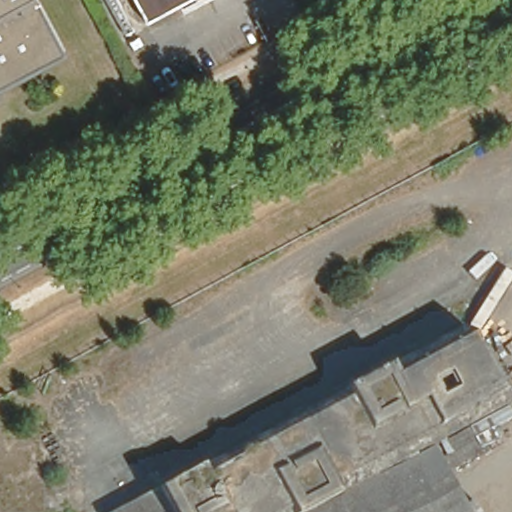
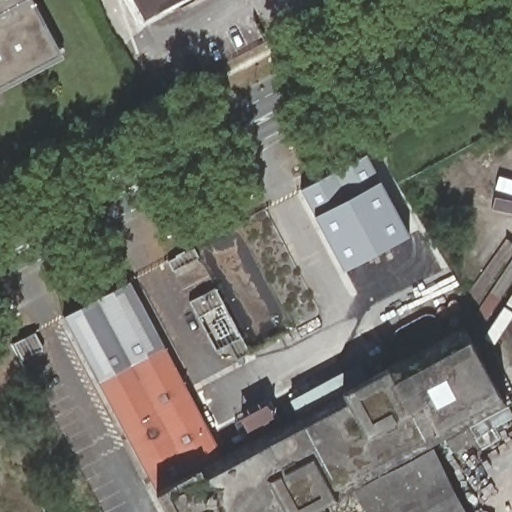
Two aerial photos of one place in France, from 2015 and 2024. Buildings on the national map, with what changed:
unchanged [(58,49),(0,80),(0,0),(32,0),(58,49)]
unchanged [(137,0),(188,0),(148,21),(137,0)]
new [(301,189),(366,154),(380,181),(409,233),(344,269),(314,215),(301,189)]
new [(130,281),(220,454),(162,486),(154,490),(65,315),(130,281)]
unchanged [(511,400),(437,439),(303,512),(176,512),(162,486),(468,319),(511,400)]
unchanged [(477,512),(303,512),(437,439),(477,512)]

